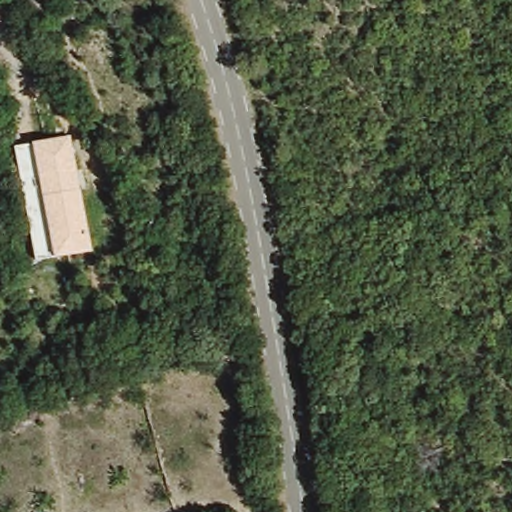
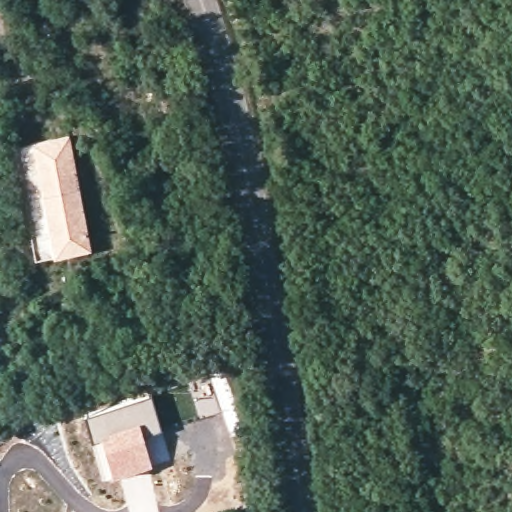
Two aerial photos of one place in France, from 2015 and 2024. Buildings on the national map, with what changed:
unchanged [(70,137),(92,252),(33,263),(11,149),(70,137)]
new [(94,440),(85,415),(152,395),(163,432),(143,433),(153,467),(104,480),(94,440)]

